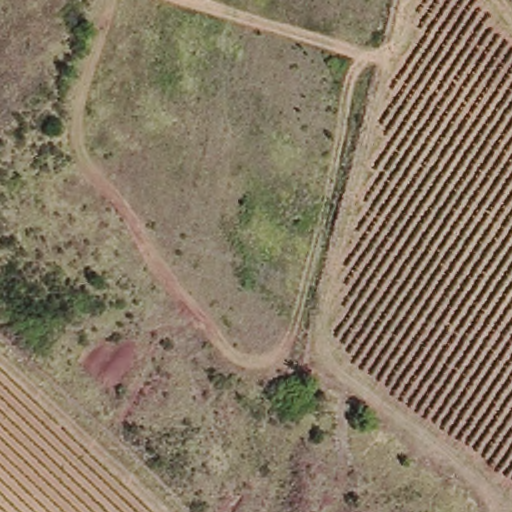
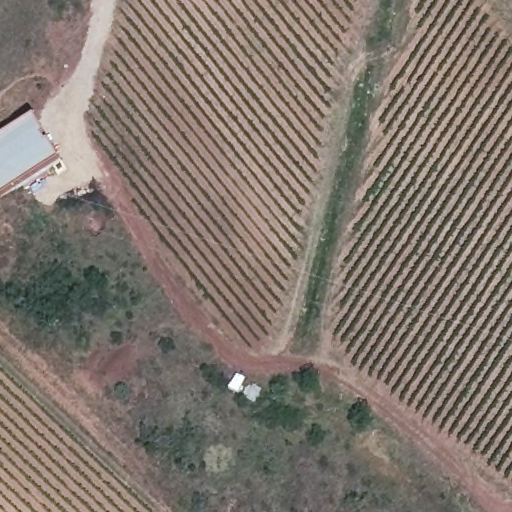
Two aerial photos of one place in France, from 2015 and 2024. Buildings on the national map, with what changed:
new [(35,115),(61,158),(0,194),(0,137),(35,115)]

